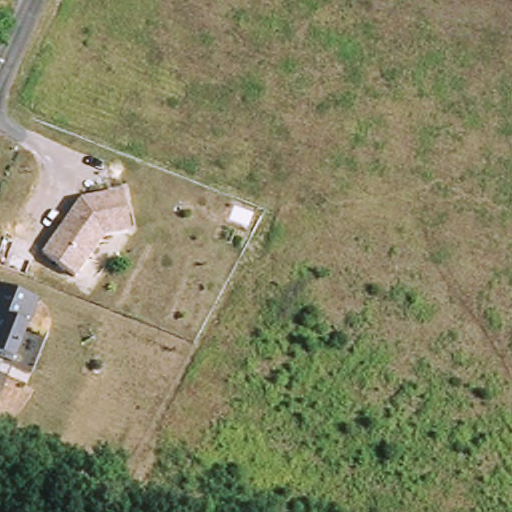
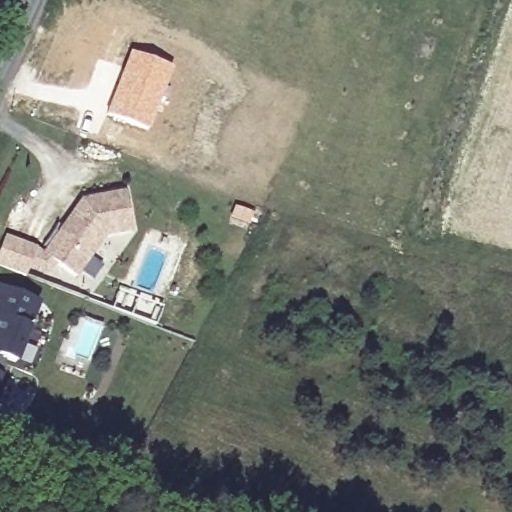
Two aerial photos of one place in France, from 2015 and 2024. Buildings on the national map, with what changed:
unchanged [(6,4),(4,11),(0,10),(0,0),(6,0),(6,4)]
new [(129,50),(172,67),(146,130),(105,113),(129,50)]
unchanged [(130,233),(106,236),(79,276),(41,252),(81,197),(123,190),(130,233)]
new [(26,277),(14,272),(0,267),(0,254),(6,239),(24,245),(37,251),(26,277)]
unchanged [(42,301),(19,363),(0,356),(0,286),(42,301)]

